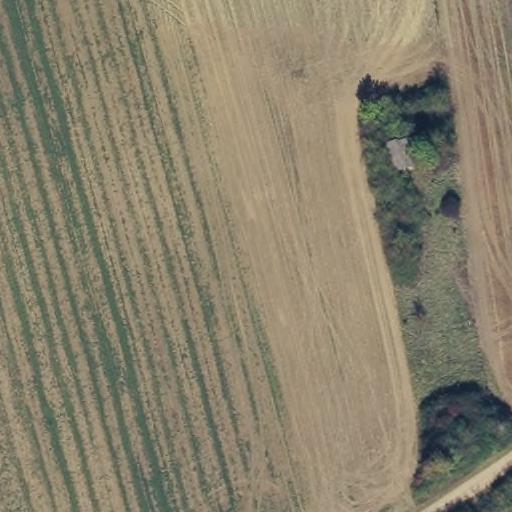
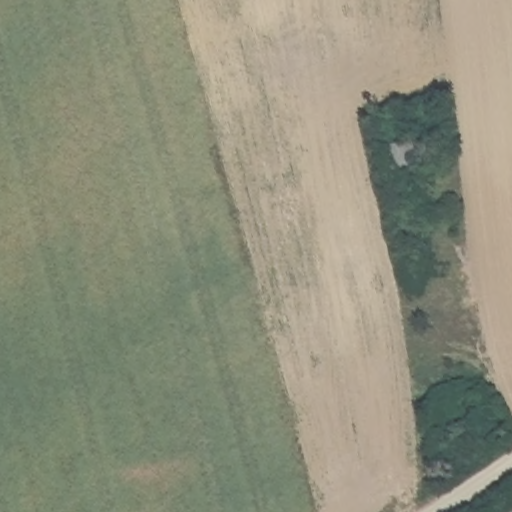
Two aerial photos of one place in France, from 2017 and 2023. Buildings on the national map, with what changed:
unchanged [(425,168),(397,173),(392,152),(412,146),(425,168)]

